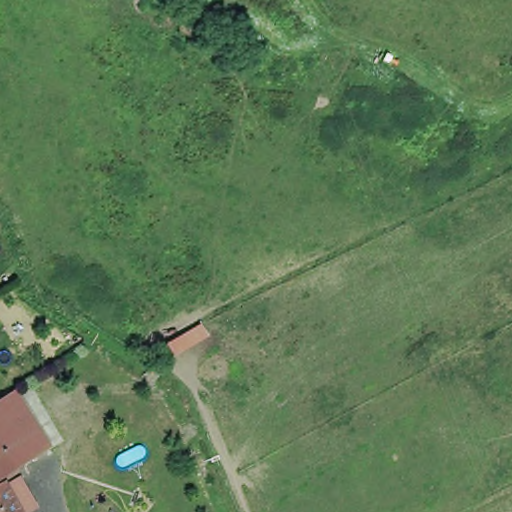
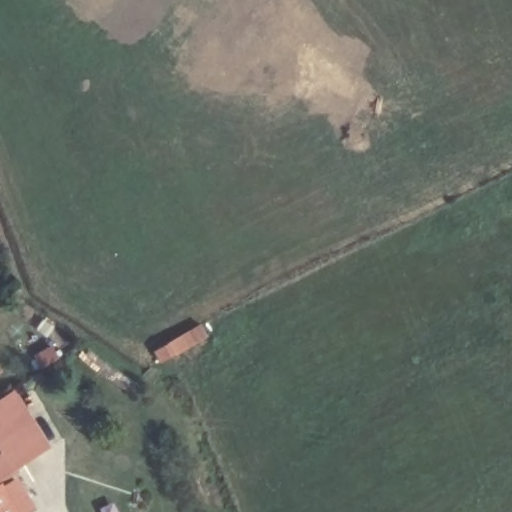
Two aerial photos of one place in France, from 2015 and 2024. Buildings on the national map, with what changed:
unchanged [(0,402),(17,428),(25,424),(44,453),(13,472),(0,451),(0,402)]
unchanged [(0,480),(0,451),(13,472),(0,480)]
unchanged [(0,491),(7,502),(15,496),(24,512),(0,512),(0,491)]

